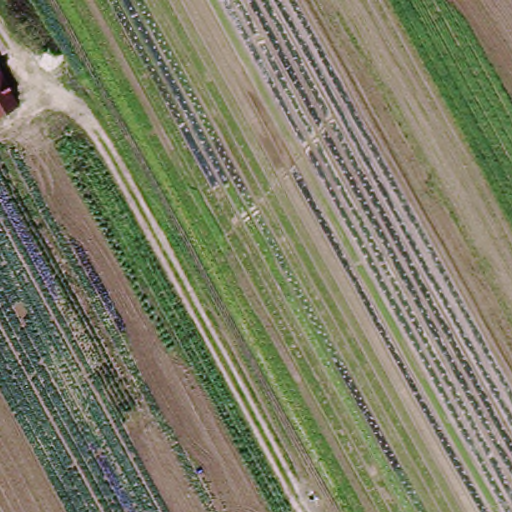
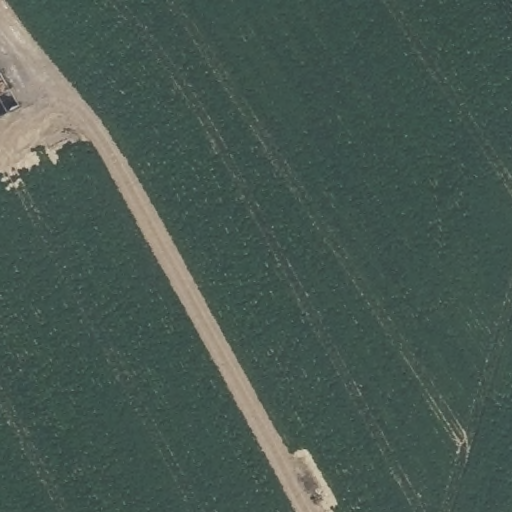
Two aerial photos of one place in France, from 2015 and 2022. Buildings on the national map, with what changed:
unchanged [(21,104),(0,117),(0,71),(21,104)]

